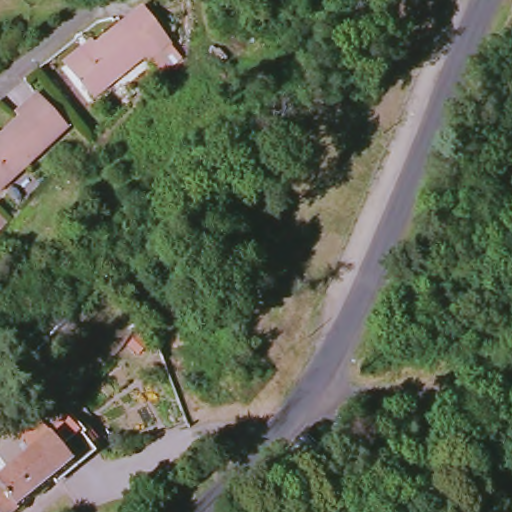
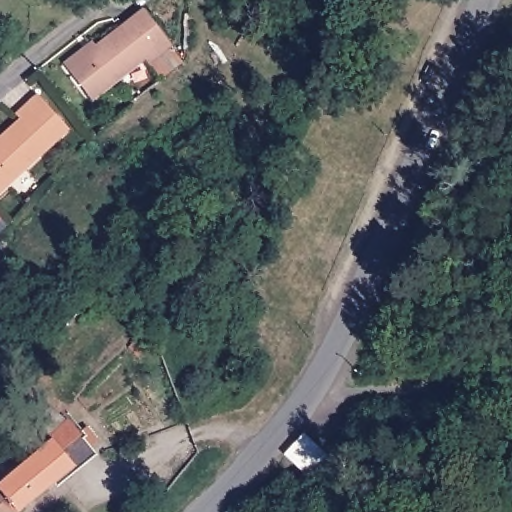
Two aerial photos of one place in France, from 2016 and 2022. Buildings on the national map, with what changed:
unchanged [(169,48),(140,13),(147,9),(189,63),(162,84),(147,65),(169,48)]
unchanged [(91,44),(95,50),(140,13),(169,48),(147,65),(144,60),(92,101),(68,72),(64,66),(91,44)]
unchanged [(12,116),(31,99),(63,130),(0,190),(0,137),(17,121),(12,116)]
unchanged [(0,218),(6,223),(0,231),(0,218)]
unchanged [(45,439),(42,437),(50,429),(60,419),(70,433),(80,424),(92,440),(83,447),(88,451),(22,506),(15,512),(0,512),(0,477),(22,458),(45,439)]

